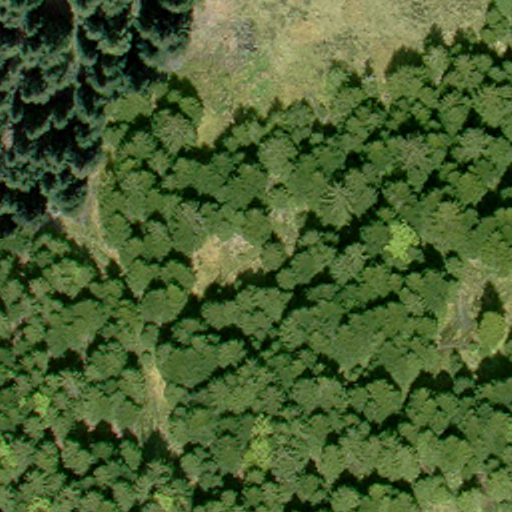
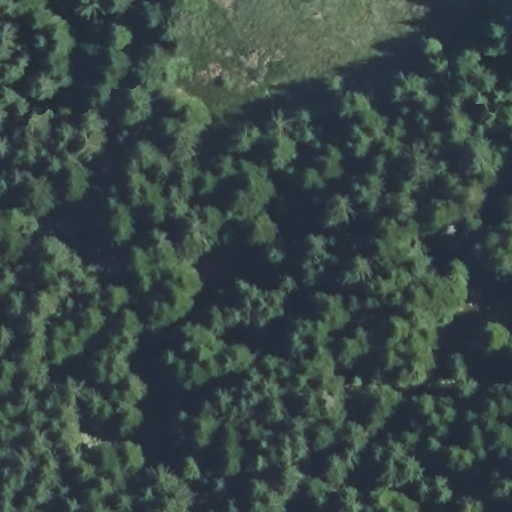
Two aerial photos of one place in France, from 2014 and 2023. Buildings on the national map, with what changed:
[]

